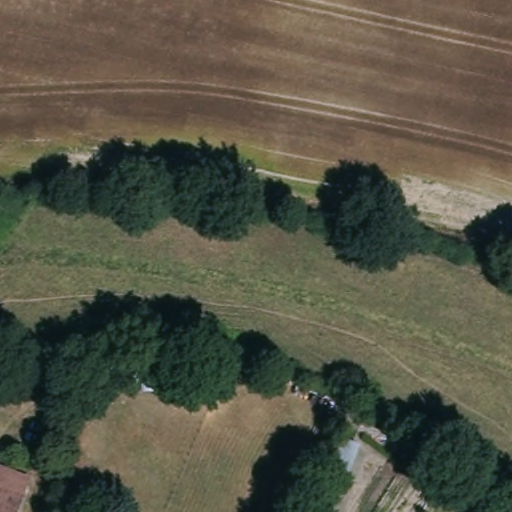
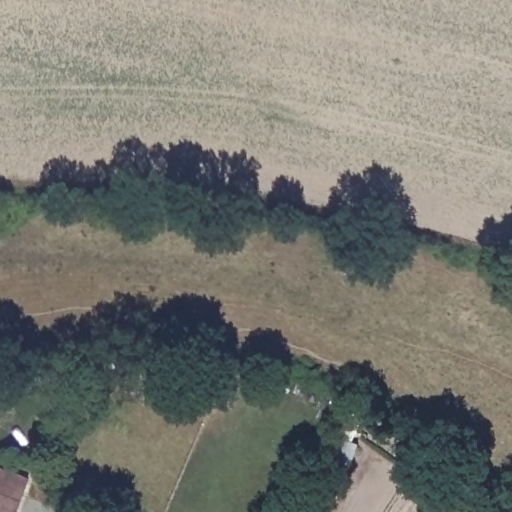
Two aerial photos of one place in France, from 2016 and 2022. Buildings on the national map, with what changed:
unchanged [(15,512),(0,512),(0,466),(29,473),(15,512)]

